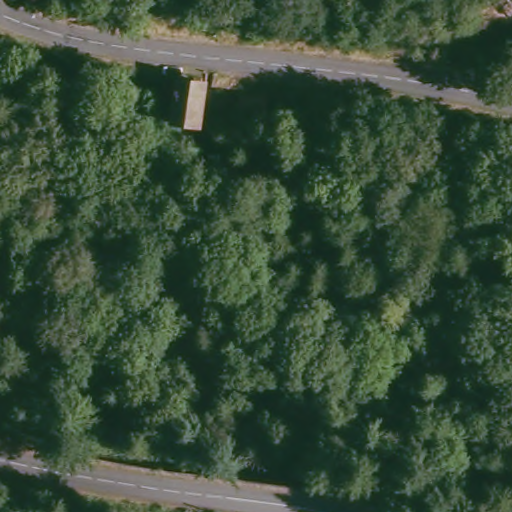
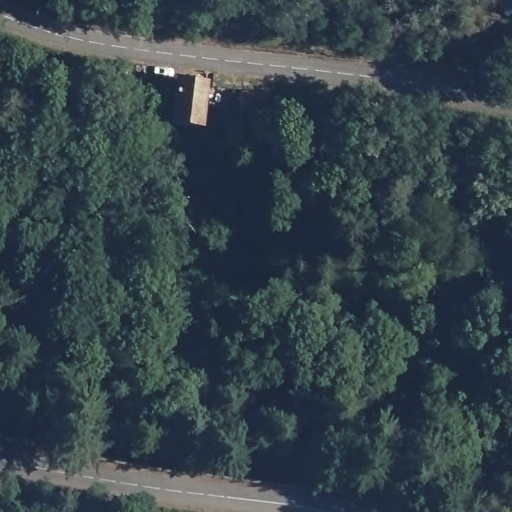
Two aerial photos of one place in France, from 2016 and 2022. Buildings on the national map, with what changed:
unchanged [(211,82),(206,125),(178,120),(182,95),(166,92),(167,77),(211,82)]
unchanged [(266,107),(239,104),(243,85),(268,88),(266,107)]

